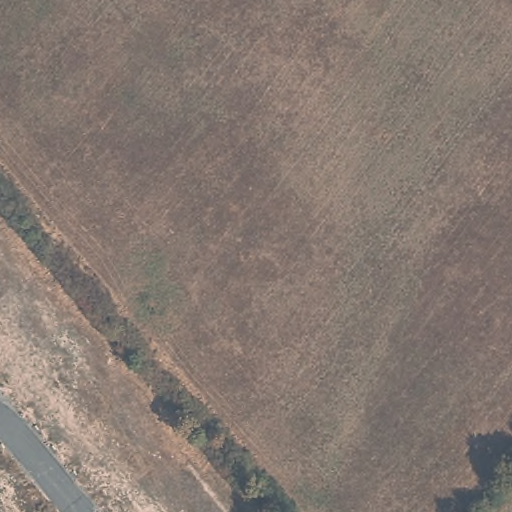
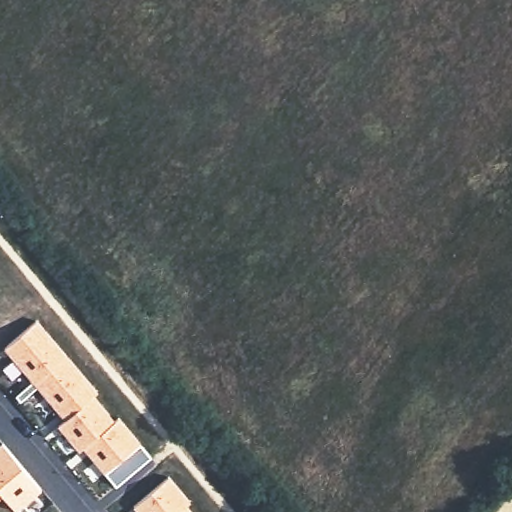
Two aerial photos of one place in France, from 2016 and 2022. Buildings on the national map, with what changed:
new [(38,319),(97,389),(93,392),(116,420),(119,416),(141,442),(104,472),(82,447),(78,451),(57,426),(64,420),(4,348),(38,319)]
new [(169,476),(190,501),(186,505),(192,512),(137,512),(132,506),(169,476)]
new [(0,496),(0,493),(2,495),(0,496)]

